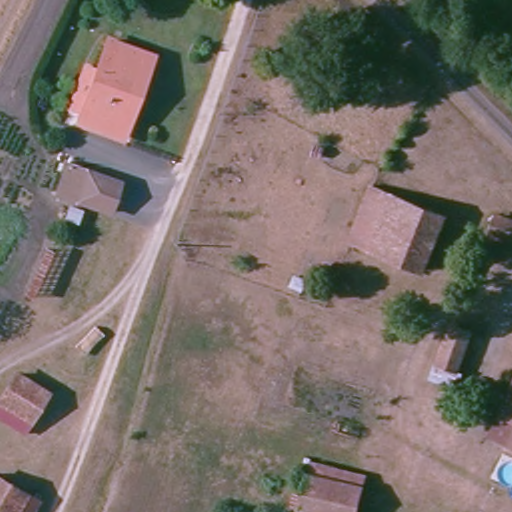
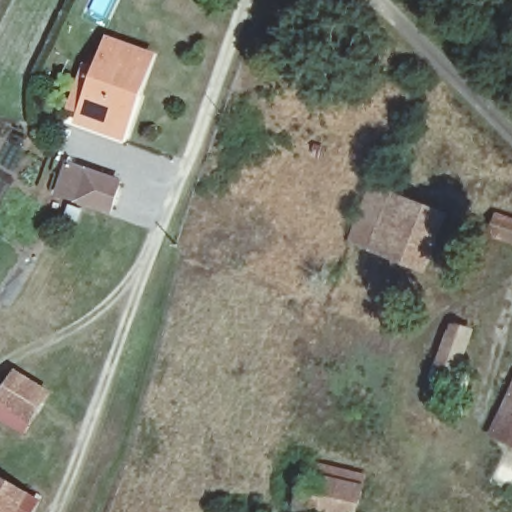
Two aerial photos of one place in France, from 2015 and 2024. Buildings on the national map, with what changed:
unchanged [(151,50),(132,91),(117,125),(88,112),(93,100),(80,94),(95,56),(109,62),(122,36),(151,50)]
unchanged [(118,176),(107,206),(52,186),(63,156),(118,176)]
unchanged [(422,266),(349,237),(369,175),(442,207),(422,266)]
unchanged [(454,381),(427,371),(444,313),(473,325),(454,381)]
unchanged [(23,429),(0,414),(0,392),(18,362),(51,383),(23,429)]
unchanged [(512,376),(512,437),(491,425),(512,376)]
unchanged [(342,512),(296,502),(303,466),(357,477),(350,512),(342,512)]
unchanged [(0,512),(0,471),(37,494),(27,512),(0,512)]

